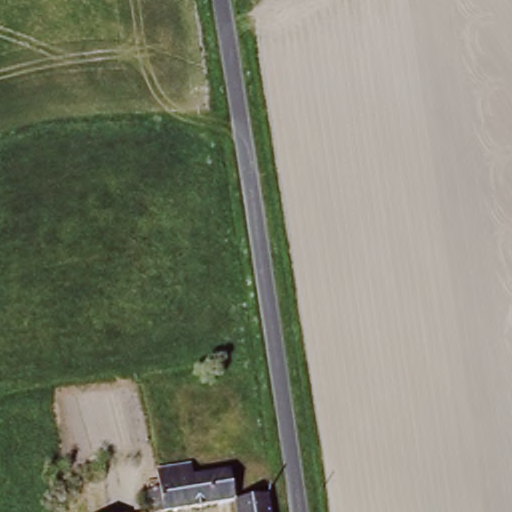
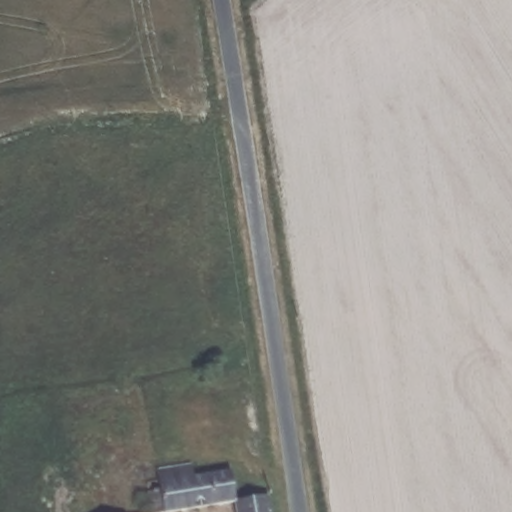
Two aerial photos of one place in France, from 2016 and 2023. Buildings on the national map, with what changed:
unchanged [(151,509),(147,489),(153,487),(159,486),(155,466),(186,460),(189,472),(204,468),(224,464),(230,493),(151,509)]
unchanged [(265,487),(270,512),(235,512),(230,493),(265,487)]
unchanged [(141,511),(141,512),(111,512),(141,508),(141,511)]

